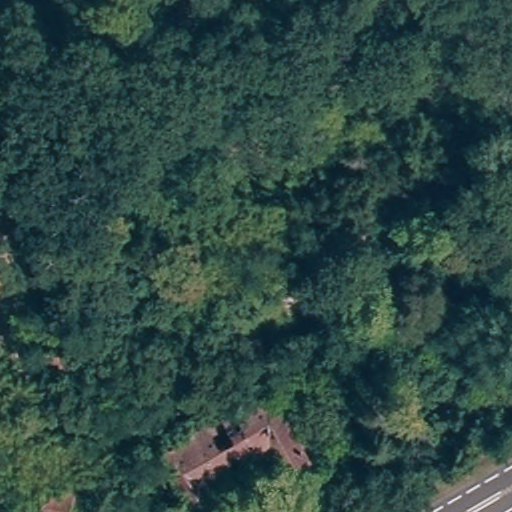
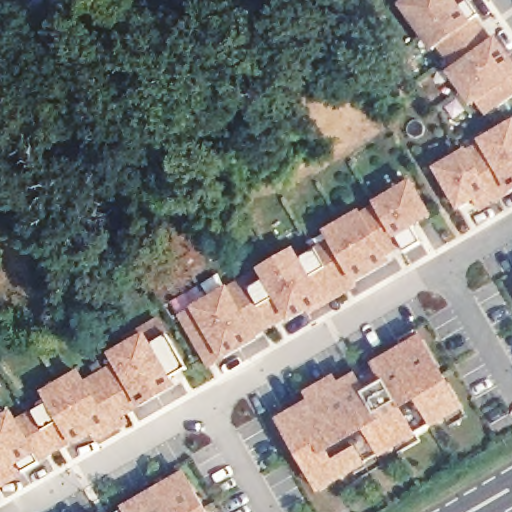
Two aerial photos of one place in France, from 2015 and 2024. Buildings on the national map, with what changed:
new [(476,83),(471,87),(449,56),(454,52),(437,28),(432,32),(409,0),(477,0),(471,4),(488,28),(495,23),(512,46),(512,79),(486,97),(476,83)]
new [(482,210),(479,200),(459,212),(433,166),(512,123),(512,195),(511,195),(482,210)]
new [(414,230),(422,244),(407,252),(402,245),(387,254),(392,263),(327,302),(289,323),(285,316),(258,333),(261,339),(222,362),(211,368),(180,313),(194,305),(229,285),(258,267),(296,247),(302,257),(317,250),(318,245),(329,238),(324,231),(413,180),(435,217),(414,230)]
demolished [(335,264),(351,255),(373,292),(288,342),(252,280),(322,240),(335,264)]
new [(310,402),(303,391),(335,375),(339,383),(405,346),(400,338),(419,328),(423,335),(467,410),(321,494),(276,418),(310,402)]
new [(15,410),(18,416),(33,409),(35,411),(49,402),(44,390),(82,369),(86,376),(114,359),(109,353),(148,332),(154,343),(168,334),(186,367),(172,376),(180,388),(142,410),(140,405),(127,416),(131,423),(102,439),(98,434),(75,448),(72,444),(42,463),(28,471),(0,491),(0,419),(15,410)]
demolished [(35,356),(57,342),(73,370),(51,383),(35,356)]
demolished [(155,455),(265,390),(309,463),(285,479),(271,455),(213,489),(226,512),(178,512),(185,507),(155,455)]
demolished [(38,434),(22,444),(14,431),(30,422),(38,434)]
demolished [(50,450),(78,489),(97,477),(109,498),(91,510),(92,512),(43,512),(17,472),(50,450)]
new [(160,486),(156,479),(178,467),(181,474),(186,471),(210,512),(115,512),(122,507),(160,486)]

